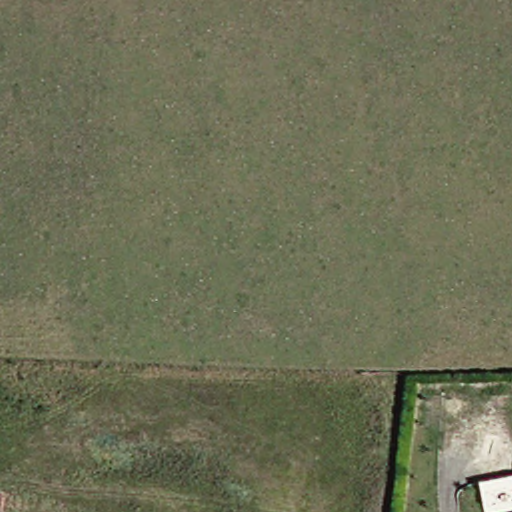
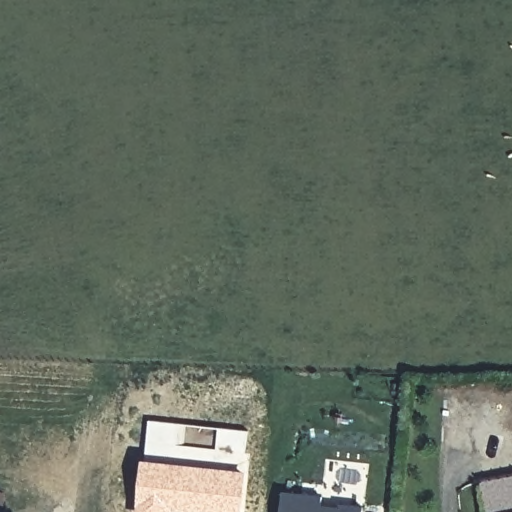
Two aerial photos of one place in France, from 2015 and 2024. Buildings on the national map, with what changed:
new [(186,512),(175,511),(175,512),(136,512),(141,458),(246,471),(242,512),(186,512)]
unchanged [(506,512),(485,512),(480,479),(512,475),(512,511),(506,512)]
unchanged [(10,512),(0,512),(0,492),(12,495),(10,512)]
unchanged [(281,512),(283,492),(324,496),(323,506),(339,507),(339,503),(362,506),(361,512),(281,512)]
unchanged [(506,512),(512,511),(512,512),(506,512)]

